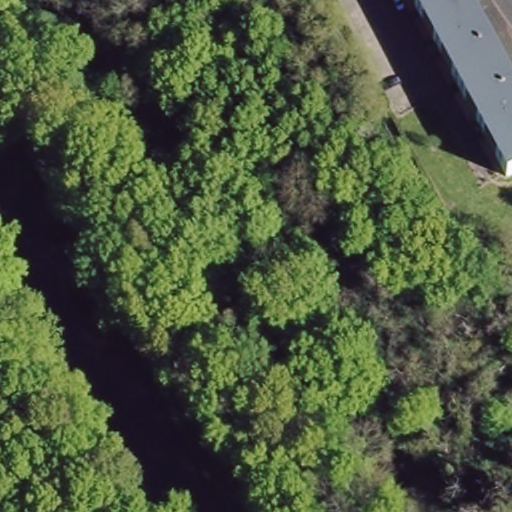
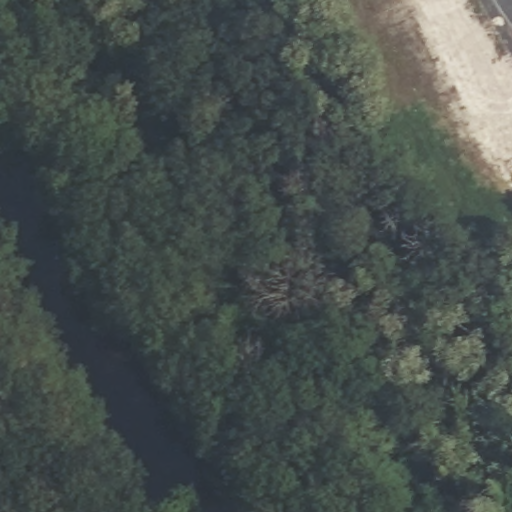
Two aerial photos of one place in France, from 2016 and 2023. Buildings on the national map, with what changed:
demolished [(512,84),(512,175),(507,177),(413,0),(467,0),(512,84)]

